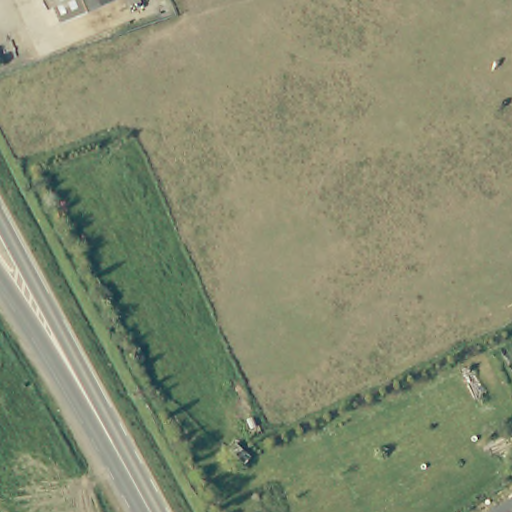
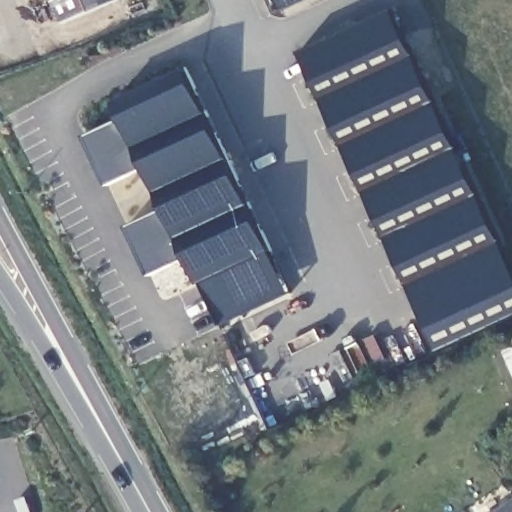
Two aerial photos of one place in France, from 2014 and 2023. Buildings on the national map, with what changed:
unchanged [(63,21),(54,0),(114,0),(63,21)]
new [(280,10),(276,0),(303,0),(280,10)]
new [(512,315),(437,348),(298,49),(392,8),(512,267),(512,315)]
new [(193,82),(257,220),(270,250),(289,292),(222,325),(201,281),(197,283),(186,258),(151,274),(129,225),(165,211),(163,206),(145,168),(110,183),(87,135),(123,121),(120,114),(112,99),(185,65),(193,82)]
unchanged [(512,512),(502,512),(512,505),(512,512)]

